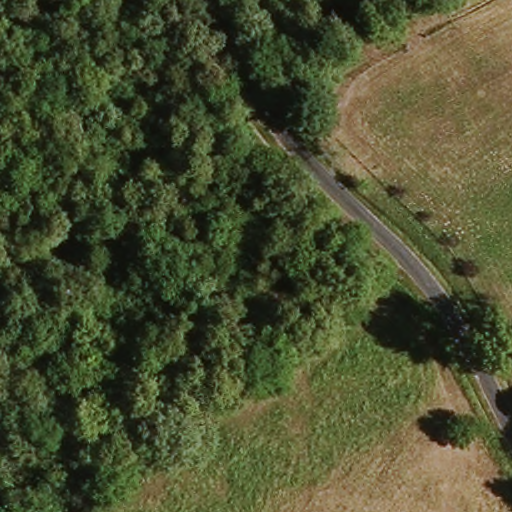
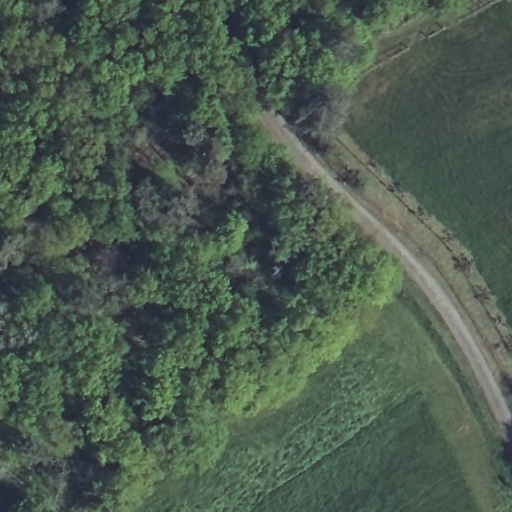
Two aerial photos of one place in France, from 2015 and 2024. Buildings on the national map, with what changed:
unchanged [(7,159),(0,158),(0,133),(9,134),(7,159)]

